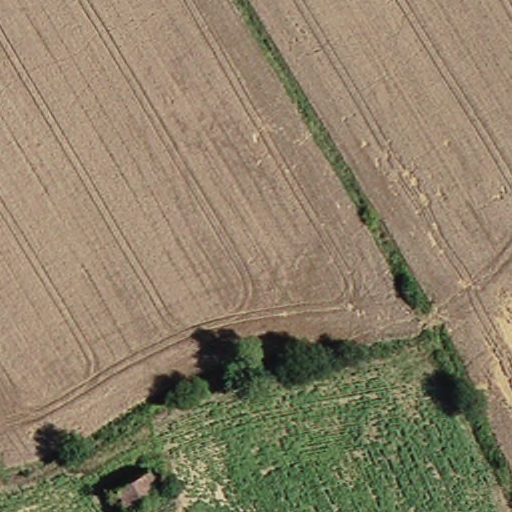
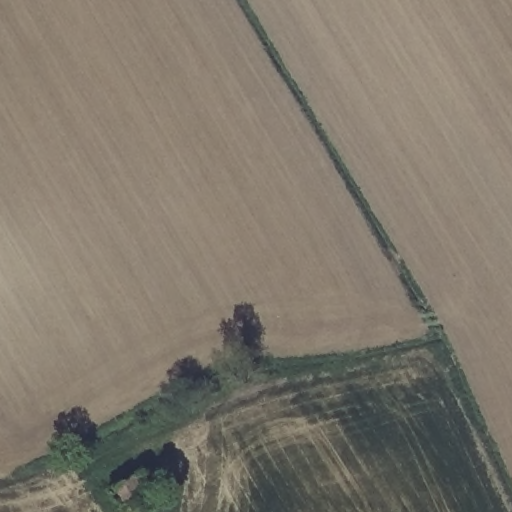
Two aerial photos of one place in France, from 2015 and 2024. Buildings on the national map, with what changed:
unchanged [(177,503),(161,512),(134,512),(118,486),(156,467),(177,503)]

